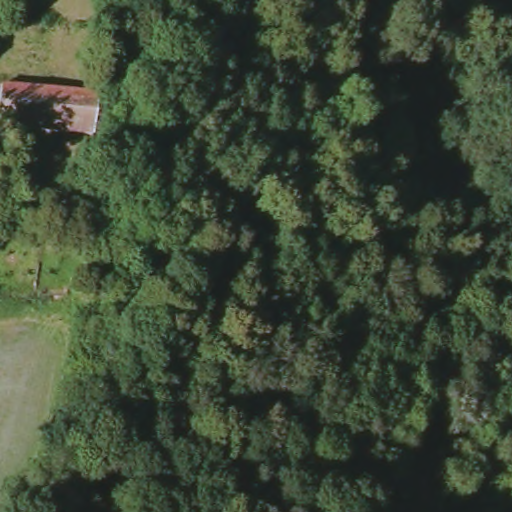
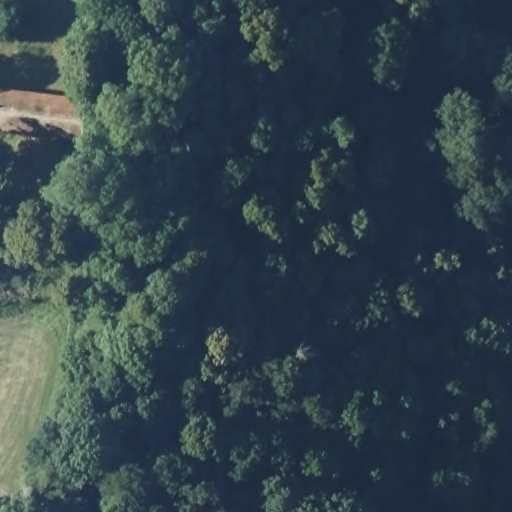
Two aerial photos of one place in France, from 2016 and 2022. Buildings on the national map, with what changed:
unchanged [(2,85),(102,97),(105,97),(96,143),(0,127),(0,96),(2,85)]

